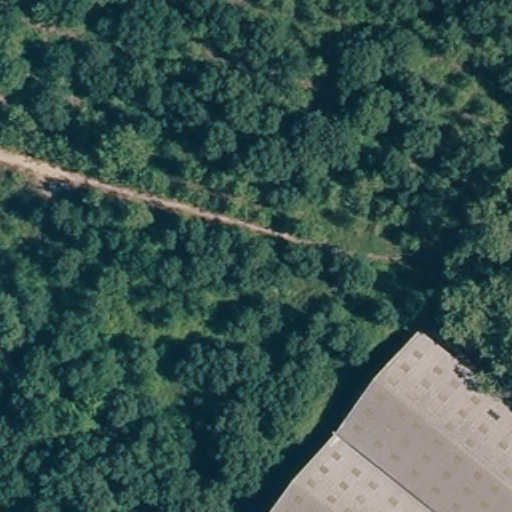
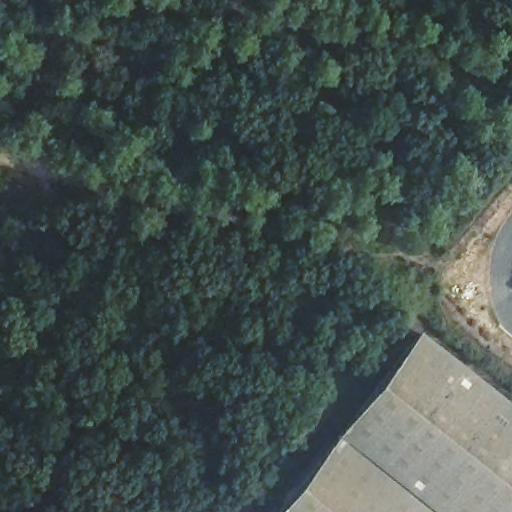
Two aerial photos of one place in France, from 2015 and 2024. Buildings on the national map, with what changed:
unchanged [(427,330),(512,398),(512,512),(279,512),(427,330)]

